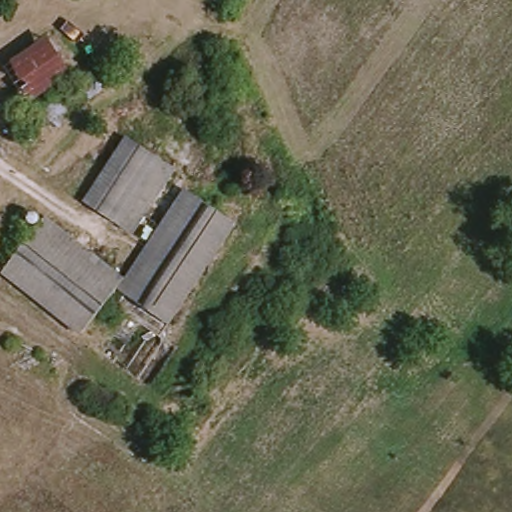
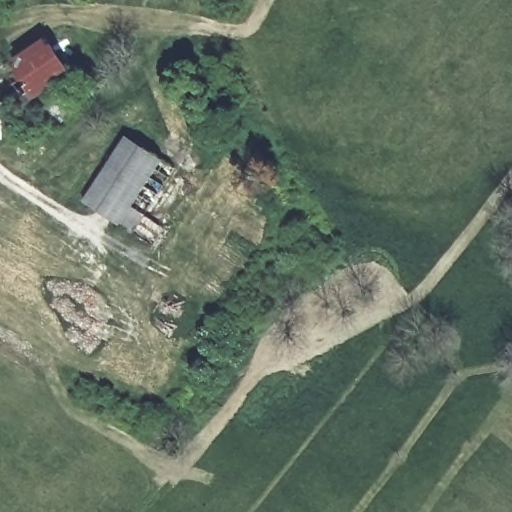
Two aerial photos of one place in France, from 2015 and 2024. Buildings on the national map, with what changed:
unchanged [(30,105),(6,67),(48,38),(72,78),(30,105)]
unchanged [(85,198),(126,136),(161,159),(121,222),(85,198)]
unchanged [(175,169),(135,231),(121,222),(161,159),(175,169)]
demolished [(236,225),(165,334),(115,302),(190,191),(236,225)]
demolished [(84,334),(2,274),(40,223),(121,282),(110,299),(84,334)]

